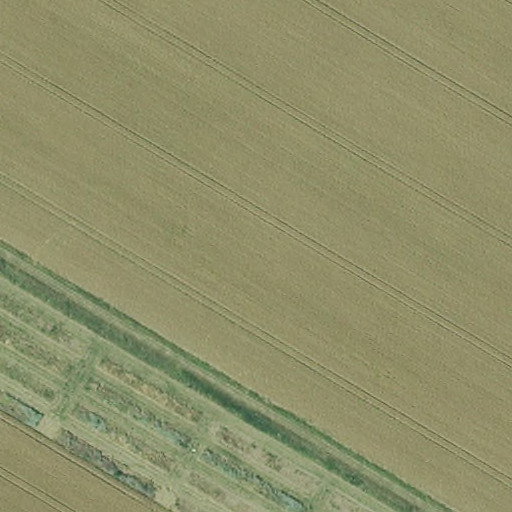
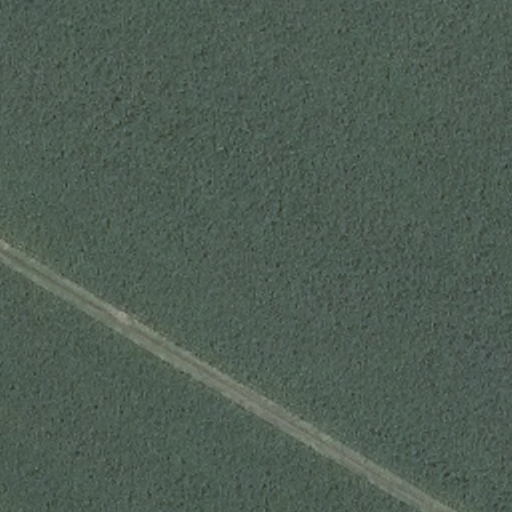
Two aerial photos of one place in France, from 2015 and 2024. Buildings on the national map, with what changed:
[]

